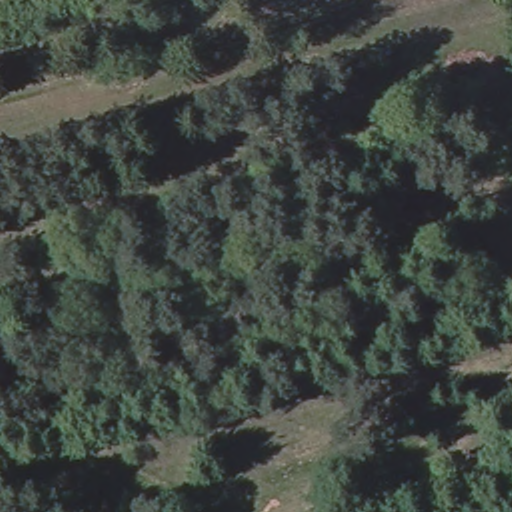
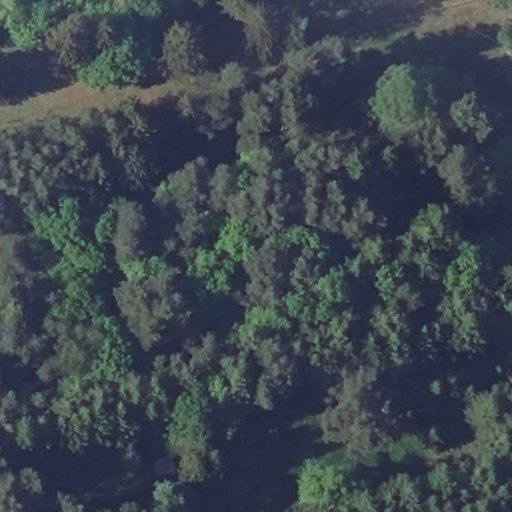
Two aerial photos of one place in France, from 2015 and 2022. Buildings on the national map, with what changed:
[]

